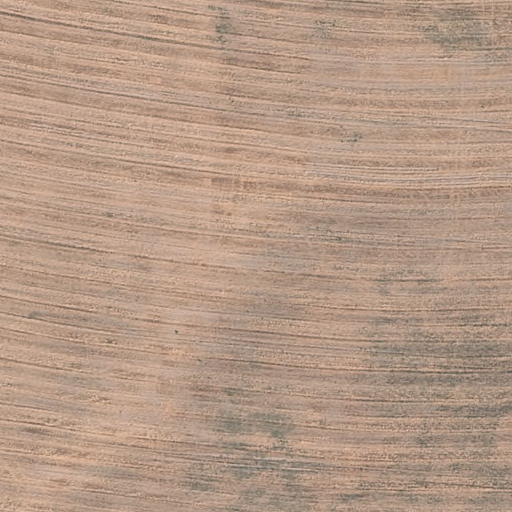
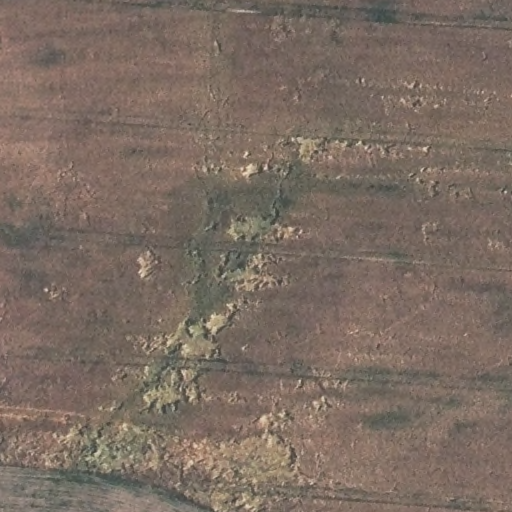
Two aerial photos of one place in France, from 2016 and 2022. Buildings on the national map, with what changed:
[]

